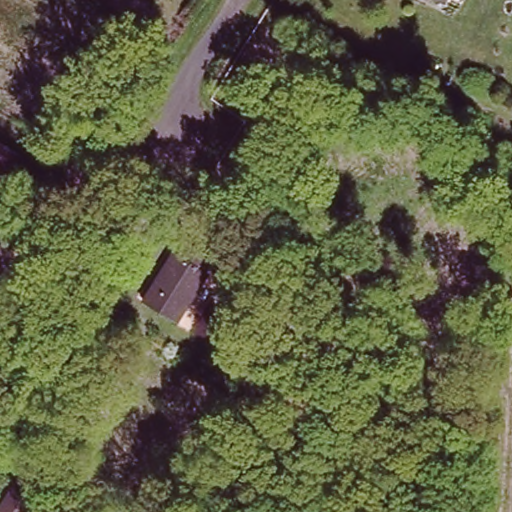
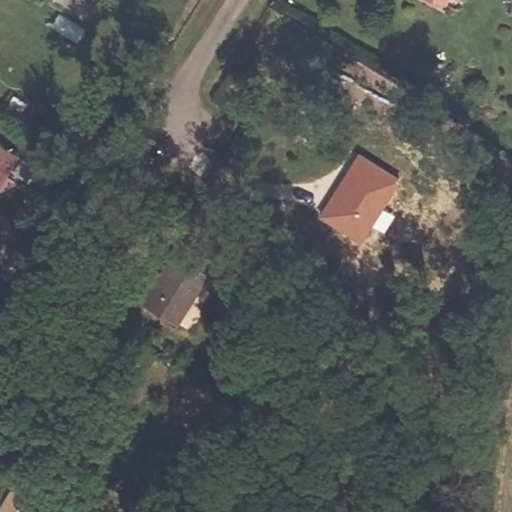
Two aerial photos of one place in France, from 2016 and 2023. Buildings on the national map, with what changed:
unchanged [(432,0),(452,0),(449,7),(432,0)]
new [(0,180),(0,143),(16,154),(0,180)]
new [(356,155),(398,179),(361,241),(320,219),(356,155)]
unchanged [(213,256),(201,275),(207,278),(179,325),(146,305),(169,265),(175,268),(189,243),(213,256)]
new [(339,270),(361,283),(352,297),(331,284),(339,270)]
unchanged [(36,500),(29,512),(0,512),(0,507),(14,485),(36,500)]

